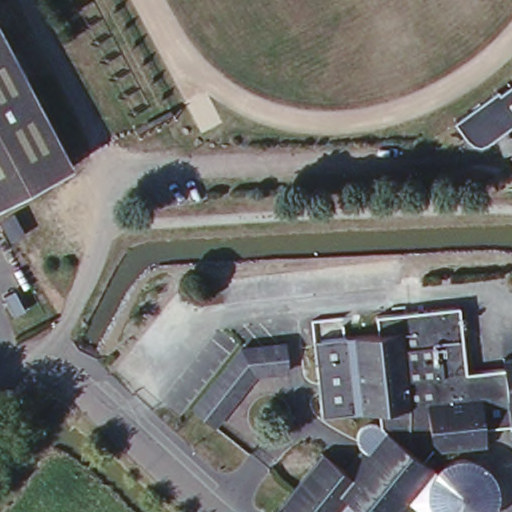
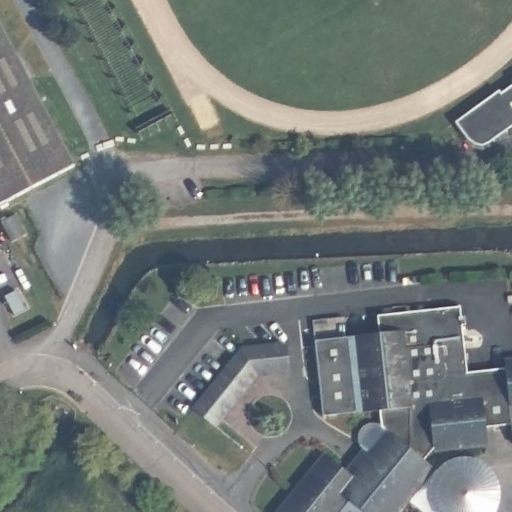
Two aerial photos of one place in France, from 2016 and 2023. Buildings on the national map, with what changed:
unchanged [(30,22),(10,32),(0,15),(0,0),(18,0),(30,22)]
unchanged [(0,205),(0,26),(74,166),(0,205)]
unchanged [(496,90),(499,94),(512,86),(512,154),(502,155),(495,139),(484,145),(472,141),(456,122),(496,90)]
unchanged [(345,464),(360,444),(359,443),(358,442),(357,440),(356,436),(356,433),(357,430),(357,427),(358,425),(360,422),(361,420),(365,418),(368,417),(372,417),(374,417),(377,418),(380,420),(379,405),(356,407),(324,410),(316,336),(348,332),(378,328),(375,310),(460,301),(466,366),(503,362),(503,355),(512,354),(512,437),(511,437),(510,420),(485,423),(486,439),(434,445),(432,443),(423,455),(437,465),(412,496),(433,512),(330,512),(270,512),(323,447),(345,464)]
unchanged [(235,344),(281,339),(285,365),(251,369),(209,421),(186,404),(235,344)]
unchanged [(447,460),(458,458),(470,458),(478,462),(486,467),(492,474),(497,483),(498,492),(497,505),(493,512),(445,512),(445,511),(444,512),(433,512),(412,496),(434,469),(436,470),(447,460)]
unchanged [(445,512),(444,512),(445,511),(445,512)]

